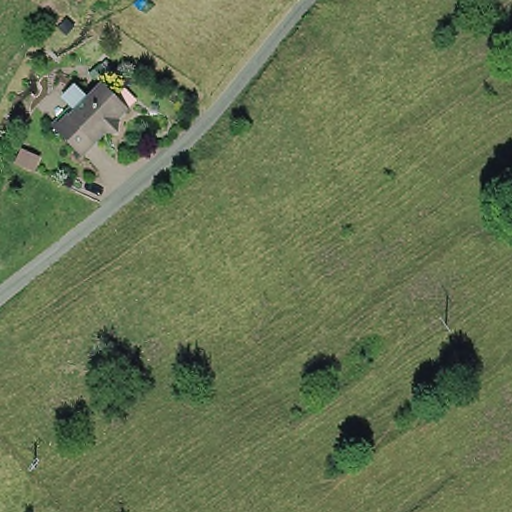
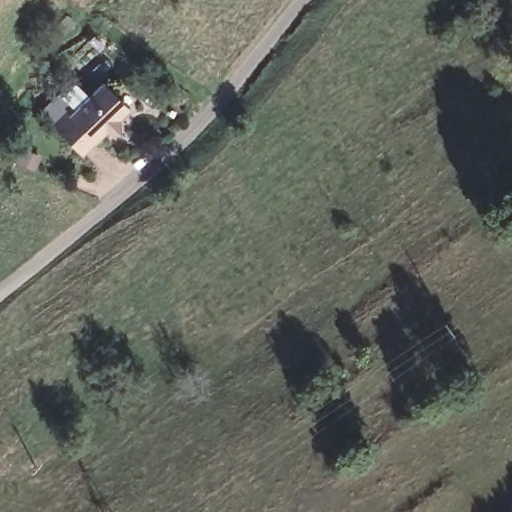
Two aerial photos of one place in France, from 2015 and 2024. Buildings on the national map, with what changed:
unchanged [(78,141),(55,119),(76,100),(81,105),(111,77),(123,90),(121,92),(134,106),(126,115),(125,127),(110,129),(103,135),(87,150),(78,141)]

